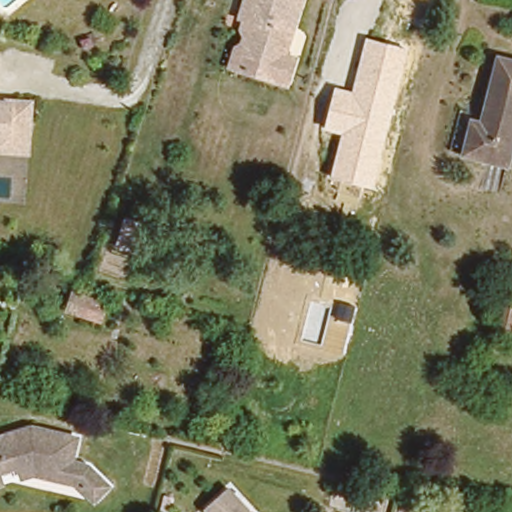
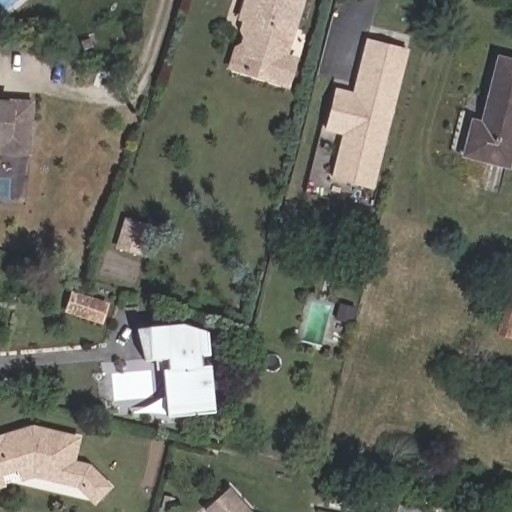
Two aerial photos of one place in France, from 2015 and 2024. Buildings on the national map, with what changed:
unchanged [(235,73),(229,71),(242,23),(239,21),(245,0),(301,0),(283,60),(296,63),(289,89),(275,85),(235,73)]
unchanged [(375,189),(332,177),(340,135),(325,130),(336,86),(350,91),(365,39),(406,49),(375,189)]
unchanged [(463,151),(472,120),(482,121),(501,55),(512,57),(512,164),(463,151)]
unchanged [(0,139),(0,101),(2,101),(1,106),(11,106),(12,101),(33,103),(30,134),(29,151),(0,150),(1,140),(0,139)]
unchanged [(135,252),(116,246),(125,220),(144,227),(135,252)]
demolished [(166,264),(147,257),(156,232),(175,238),(166,264)]
unchanged [(511,295),(505,322),(491,319),(498,292),(511,295)]
unchanged [(96,306),(92,319),(72,313),(76,299),(96,306)]
new [(167,417),(160,359),(144,361),(135,328),(180,324),(206,332),(215,412),(167,417)]
unchanged [(70,438),(64,462),(73,464),(68,483),(59,481),(26,474),(15,477),(9,457),(0,459),(0,435),(25,428),(70,438)]
unchanged [(0,462),(0,464),(5,480),(0,481),(0,462)]
unchanged [(227,490),(235,498),(248,512),(204,512),(227,490)]

